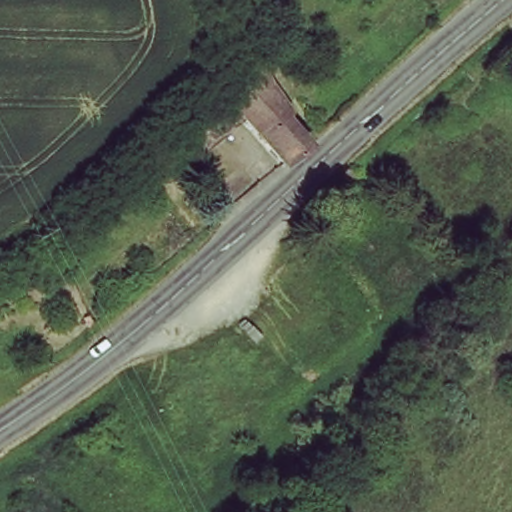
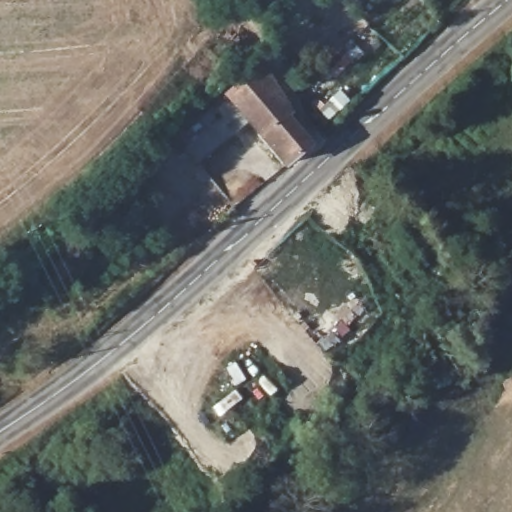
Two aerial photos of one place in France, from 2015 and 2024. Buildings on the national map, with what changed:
unchanged [(259,63),(314,137),(285,164),(223,90),(259,63)]

